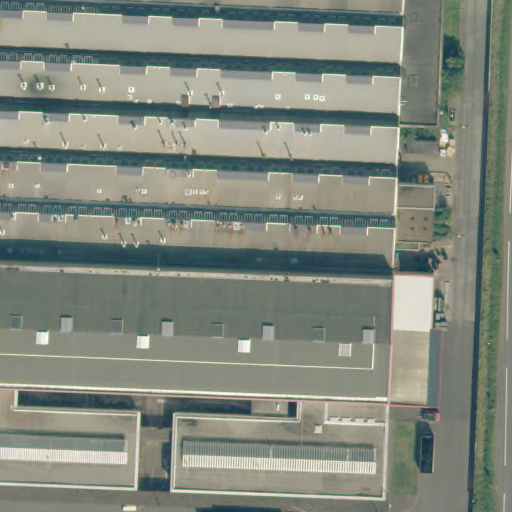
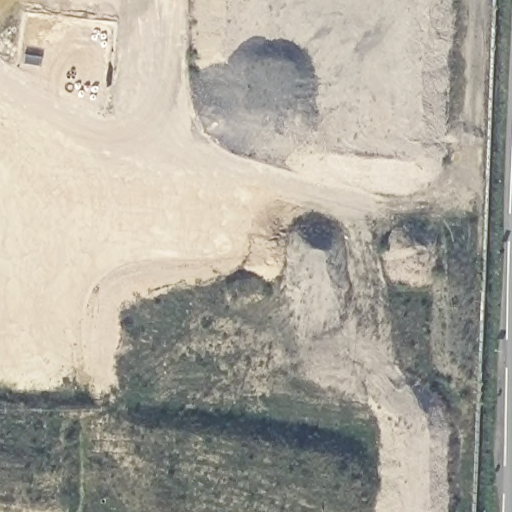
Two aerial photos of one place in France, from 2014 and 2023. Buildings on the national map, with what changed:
demolished [(397,121),(395,182),(434,184),(432,240),(424,240),(424,249),(393,248),(392,268),(387,393),(382,494),(173,486),(176,411),(237,414),(238,396),(282,398),(280,416),(298,417),(299,389),(16,377),(16,384),(31,386),(30,405),(138,410),(134,484),(0,479),(0,0),(440,0),(436,123),(397,121)]

